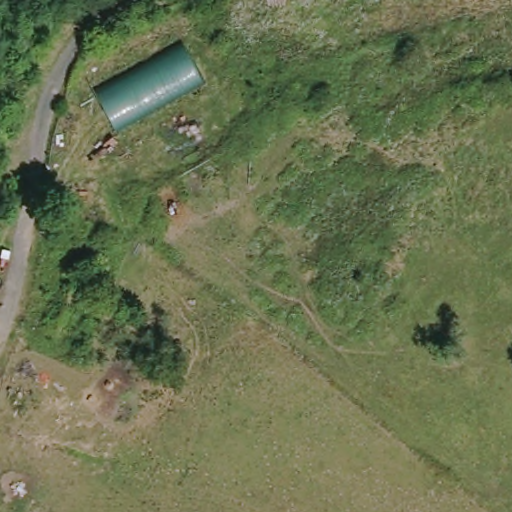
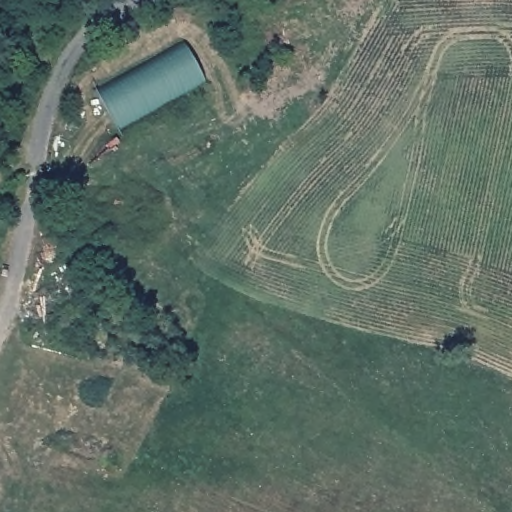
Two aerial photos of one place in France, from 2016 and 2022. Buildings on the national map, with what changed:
unchanged [(103,117),(93,97),(89,88),(95,85),(182,43),(202,85),(123,124),(109,130),(103,117)]

